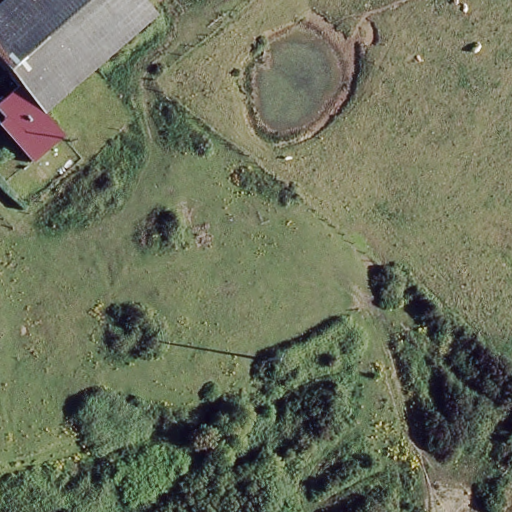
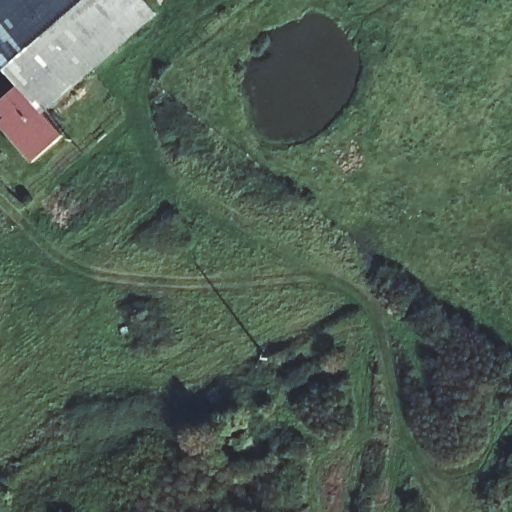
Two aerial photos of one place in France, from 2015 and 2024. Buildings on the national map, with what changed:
unchanged [(0,132),(0,91),(2,90),(14,80),(0,64),(0,0),(153,0),(148,6),(35,104),(55,130),(22,158),(6,140),(0,132)]

